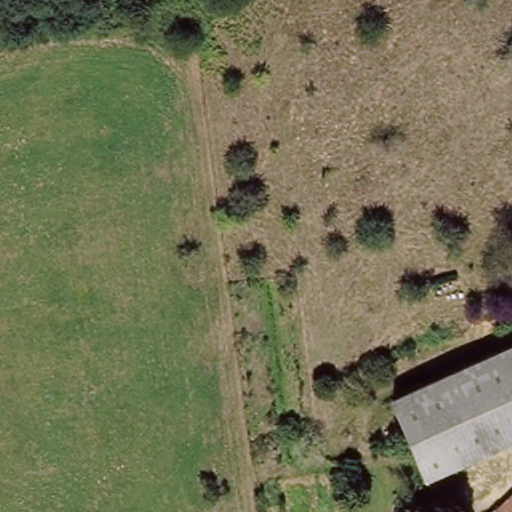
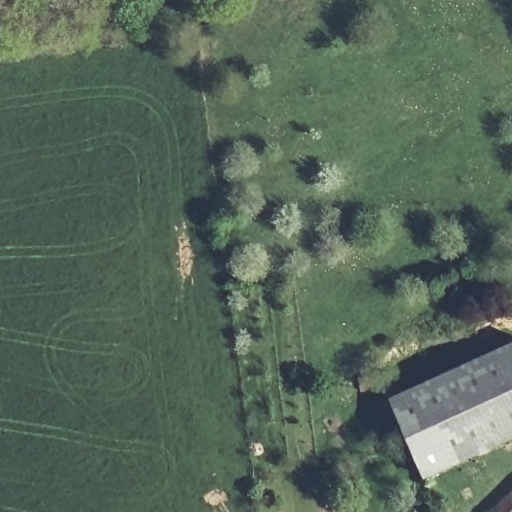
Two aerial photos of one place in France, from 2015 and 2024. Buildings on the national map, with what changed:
unchanged [(512,440),(428,479),(392,401),(512,345),(512,440)]
unchanged [(512,512),(492,512),(512,492),(512,512)]

